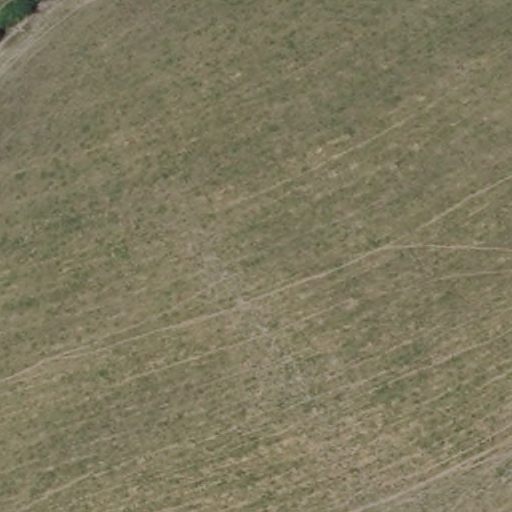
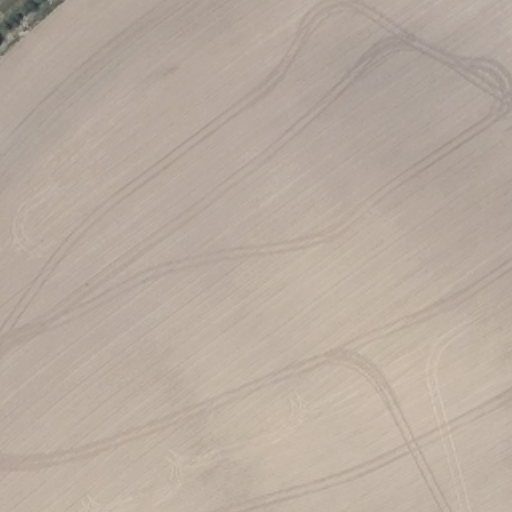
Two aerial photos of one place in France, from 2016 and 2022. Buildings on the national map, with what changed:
[]

